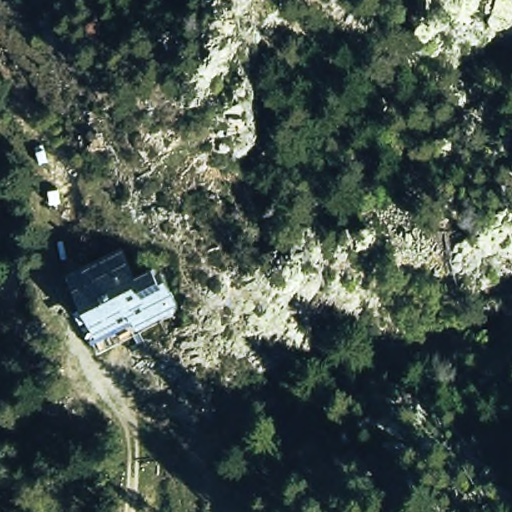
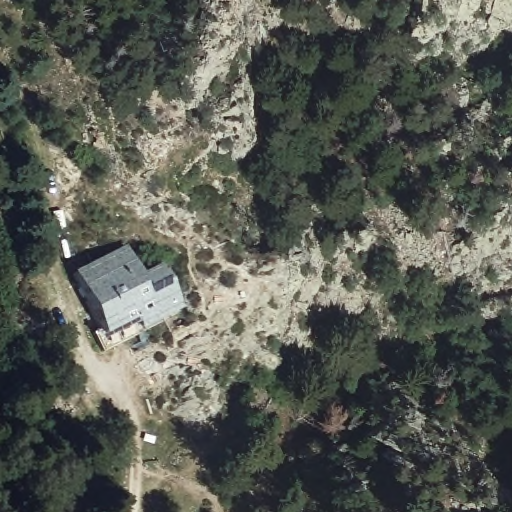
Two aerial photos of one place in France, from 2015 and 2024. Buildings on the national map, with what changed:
unchanged [(131,243),(144,270),(163,259),(188,312),(148,333),(141,319),(104,337),(75,267),(131,243)]

